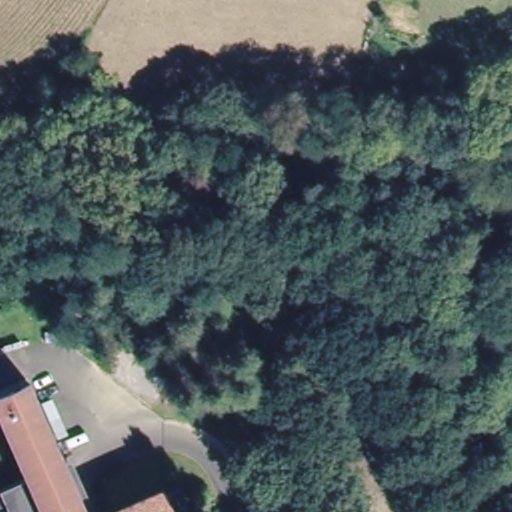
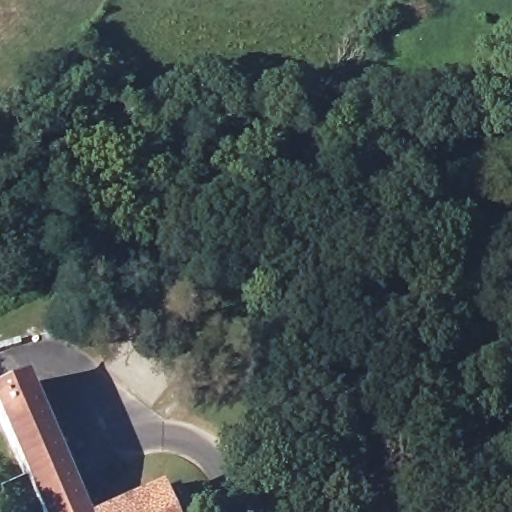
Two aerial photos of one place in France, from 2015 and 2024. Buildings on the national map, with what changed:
unchanged [(24,477),(7,440),(0,424),(0,391),(25,381),(61,459),(69,455),(93,506),(85,511),(85,512),(8,512),(0,495),(0,488),(24,477)]
unchanged [(168,512),(103,512),(157,487),(168,512)]

